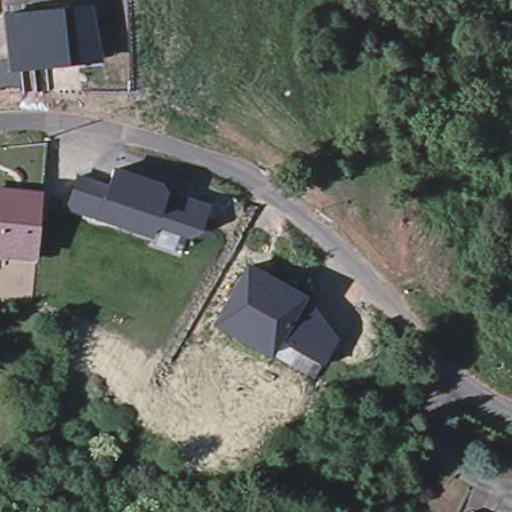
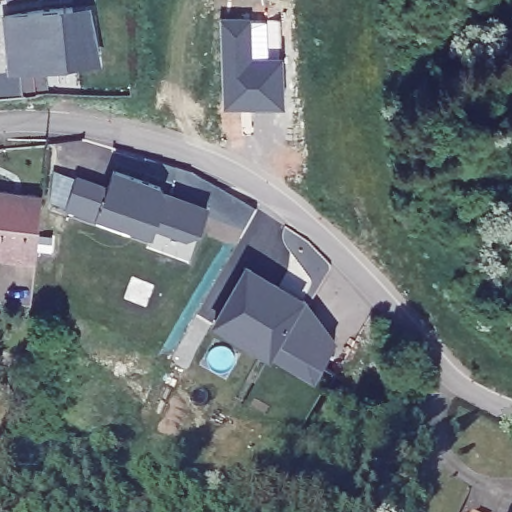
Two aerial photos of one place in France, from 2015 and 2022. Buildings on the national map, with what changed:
unchanged [(3,18),(90,7),(100,61),(8,71),(3,18)]
new [(251,24),(251,62),(284,64),(287,114),(225,113),(218,22),(251,24)]
unchanged [(77,178),(107,186),(112,169),(160,182),(165,190),(207,207),(200,229),(183,239),(157,230),(152,237),(67,209),(77,178)]
unchanged [(37,219),(33,252),(0,248),(0,188),(4,189),(40,192),(37,219)]
unchanged [(337,338),(321,366),(280,340),(270,357),(211,324),(246,263),(307,295),(337,338)]

